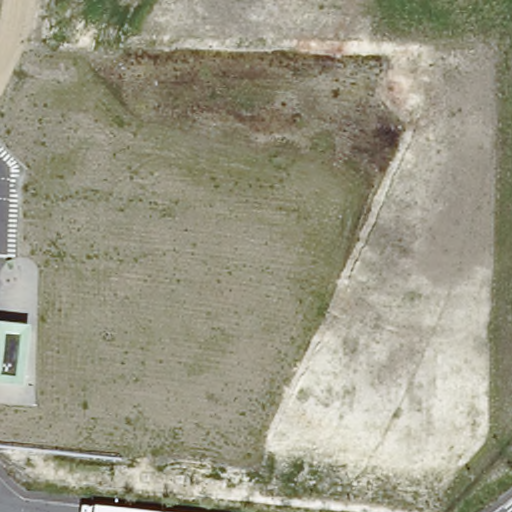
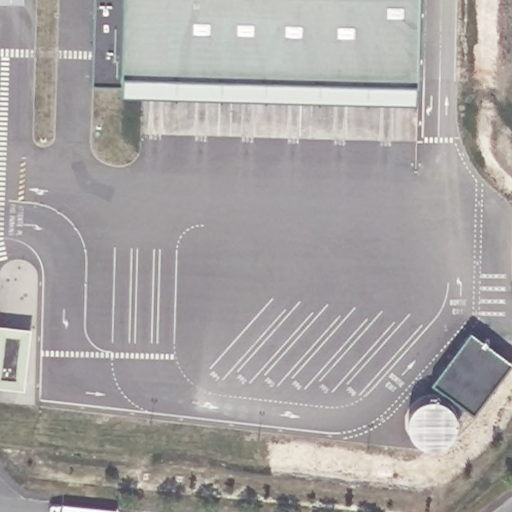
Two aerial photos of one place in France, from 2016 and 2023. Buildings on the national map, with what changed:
new [(91,83),(96,0),(422,0),(419,81),(122,73),(122,85),(91,83)]
unchanged [(24,388),(0,386),(0,323),(31,327),(24,388)]
new [(475,417),(431,382),(472,330),(512,362),(512,364),(475,417)]

